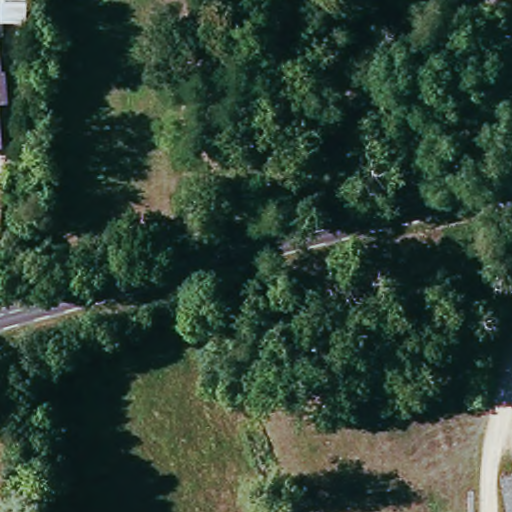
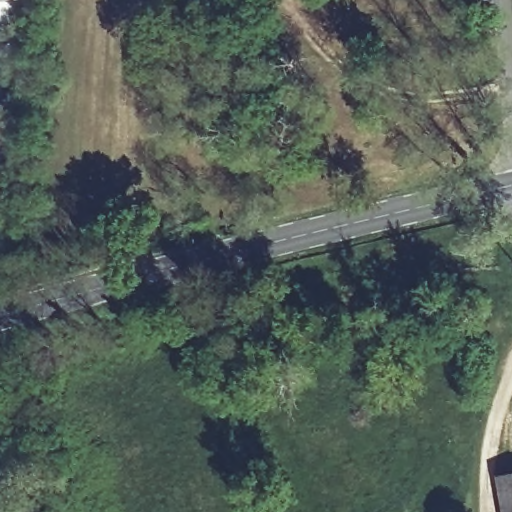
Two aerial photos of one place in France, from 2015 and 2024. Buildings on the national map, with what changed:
unchanged [(0,163),(0,93),(6,162),(0,163)]
unchanged [(512,512),(505,476),(512,475),(512,512)]

